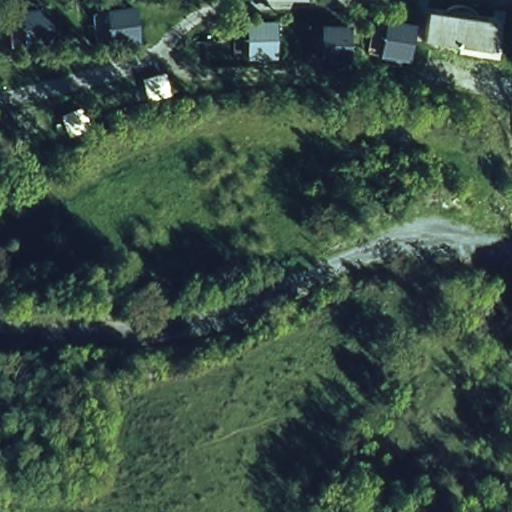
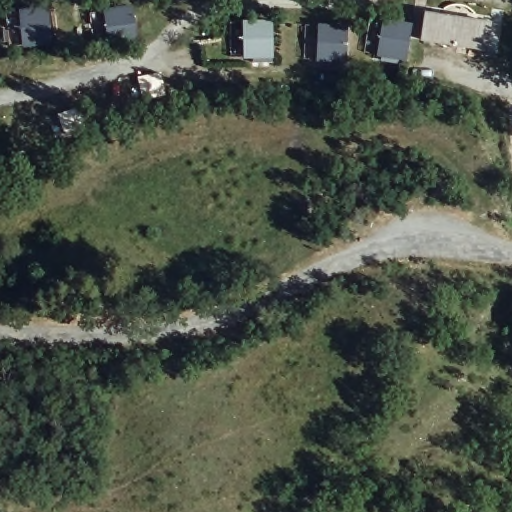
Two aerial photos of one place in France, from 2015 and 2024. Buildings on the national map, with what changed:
unchanged [(56,36),(24,40),(20,7),(53,4),(56,36)]
unchanged [(131,5),(134,39),(101,43),(96,11),(131,5)]
unchanged [(499,26),(493,59),(415,43),(421,14),(499,26)]
unchanged [(273,16),(274,54),(247,56),(244,18),(273,16)]
unchanged [(409,55),(379,53),(381,17),(412,19),(409,55)]
unchanged [(348,18),(349,56),(319,56),(319,19),(348,18)]
unchanged [(143,65),(148,91),(102,99),(98,75),(143,65)]
unchanged [(38,121),(46,160),(13,169),(8,130),(38,121)]

